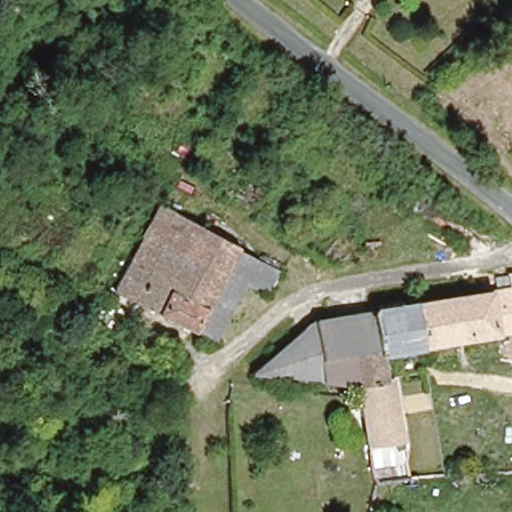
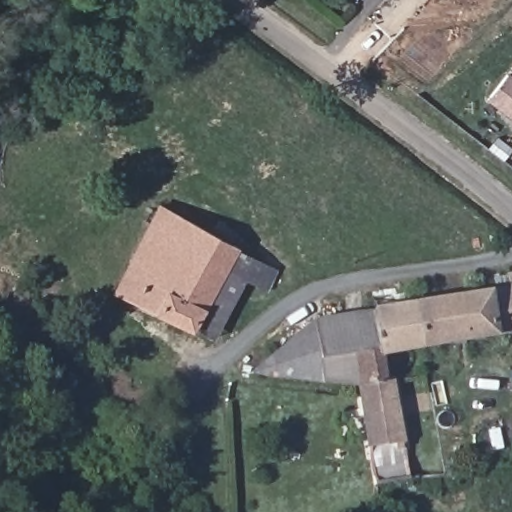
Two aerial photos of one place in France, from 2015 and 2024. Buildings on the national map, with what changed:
new [(508,71),(512,74),(512,119),(486,99),(508,71)]
unchanged [(231,247),(192,325),(111,293),(157,203),(231,247)]
unchanged [(424,344),(417,301),(496,287),(495,275),(496,275),(512,273),(512,331),(424,345),(424,344)]
unchanged [(254,373),(313,319),(417,301),(424,344),(424,345),(382,352),(385,376),(359,387),(254,373)]
unchanged [(359,387),(385,376),(397,374),(414,477),(381,488),(362,400),(359,387)]

